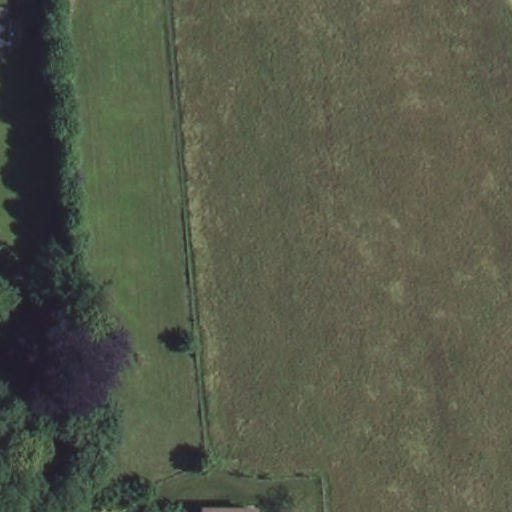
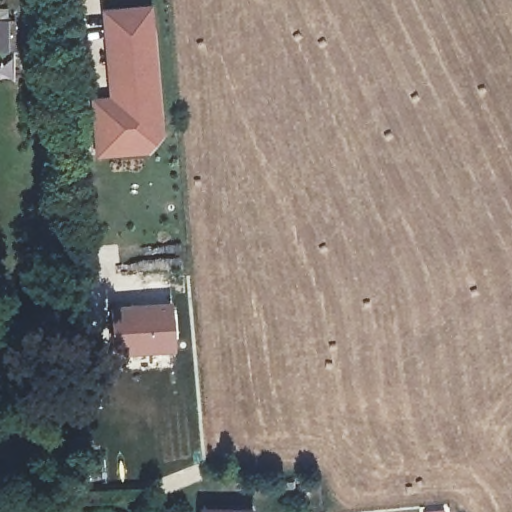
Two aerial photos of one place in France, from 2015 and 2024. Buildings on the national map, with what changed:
unchanged [(13,0),(14,25),(0,25),(0,0),(13,0)]
new [(107,94),(101,7),(154,3),(160,56),(167,131),(149,154),(92,157),(90,95),(107,94)]
new [(174,350),(116,351),(111,302),(172,298),(174,350)]
unchanged [(256,508),(256,512),(199,512),(200,506),(256,508)]

